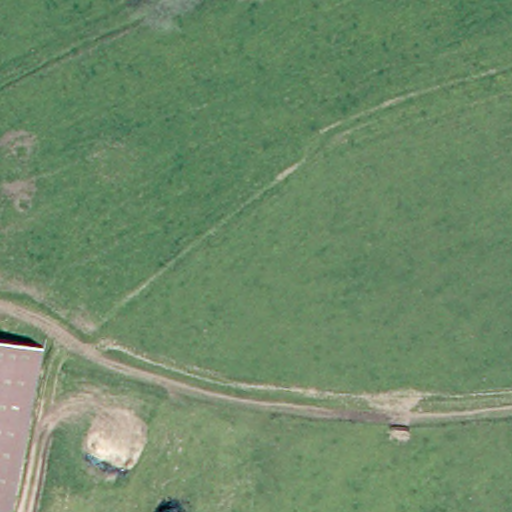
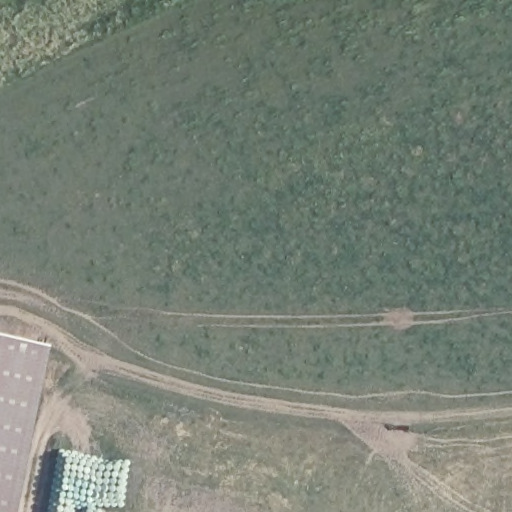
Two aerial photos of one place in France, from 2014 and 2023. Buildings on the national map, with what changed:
unchanged [(47,377),(20,512),(0,512),(0,343),(52,353),(47,377)]

